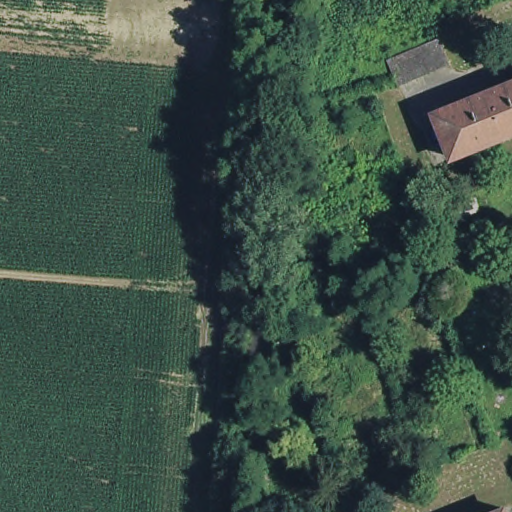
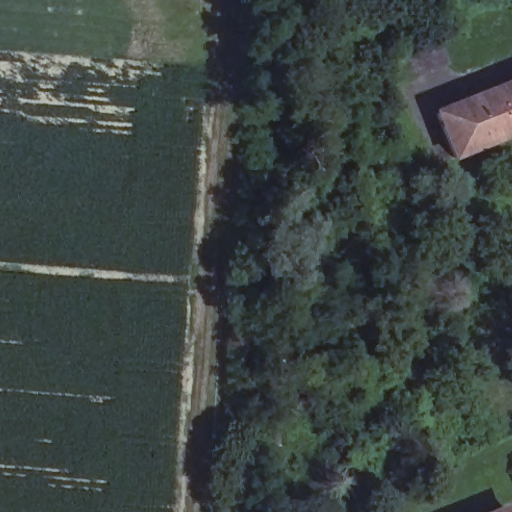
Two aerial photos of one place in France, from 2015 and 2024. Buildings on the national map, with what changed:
unchanged [(456,67),(401,91),(390,61),(444,38),(456,67)]
unchanged [(435,107),(512,76),(512,128),(451,152),(435,107)]
unchanged [(387,282),(369,271),(376,261),(393,271),(387,282)]
unchanged [(448,283),(427,291),(422,279),(443,271),(448,283)]
unchanged [(303,347),(282,356),(277,344),(299,336),(303,347)]
unchanged [(487,512),(506,505),(509,512),(487,512)]

